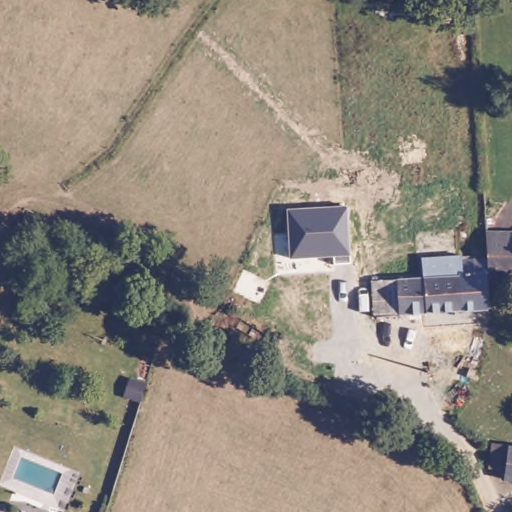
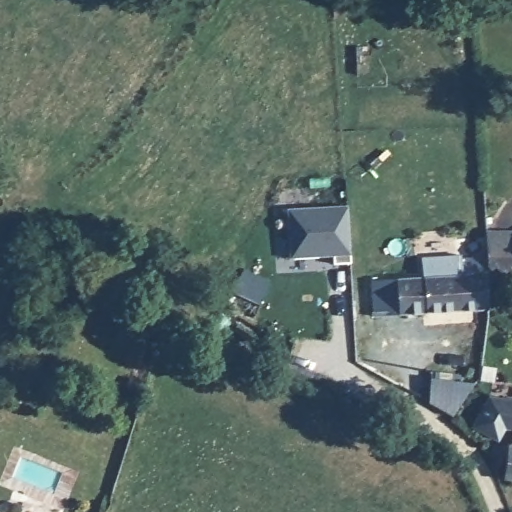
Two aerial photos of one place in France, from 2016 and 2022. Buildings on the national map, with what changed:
unchanged [(290,256),(287,208),(348,205),(350,253),(350,261),(333,262),(333,255),(290,256)]
unchanged [(482,278),(482,264),(480,231),(479,224),(512,224),(512,270),(509,276),(482,278)]
unchanged [(456,245),(457,266),(482,264),(482,278),(484,297),(396,301),(394,282),(380,282),(380,269),(418,267),(419,246),(456,245)]
unchanged [(485,310),(396,316),(370,318),(367,281),(380,282),(394,282),(396,301),(484,297),(485,310)]
new [(435,379),(435,371),(458,374),(459,382),(475,384),(451,417),(430,404),(430,379),(435,379)]
new [(499,443),(471,427),(489,396),(512,399),(512,481),(503,479),(510,430),(505,430),(499,443)]
demolished [(512,472),(502,470),(505,437),(512,438),(512,472)]

